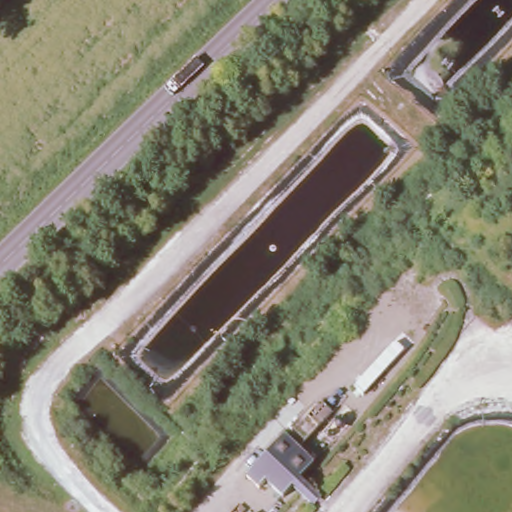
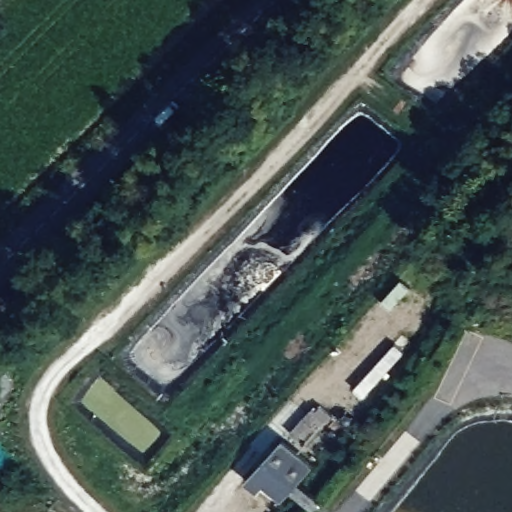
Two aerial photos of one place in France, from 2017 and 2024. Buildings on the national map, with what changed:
unchanged [(317,461),(285,500),(265,483),(261,491),(250,480),(288,437),(317,461)]

